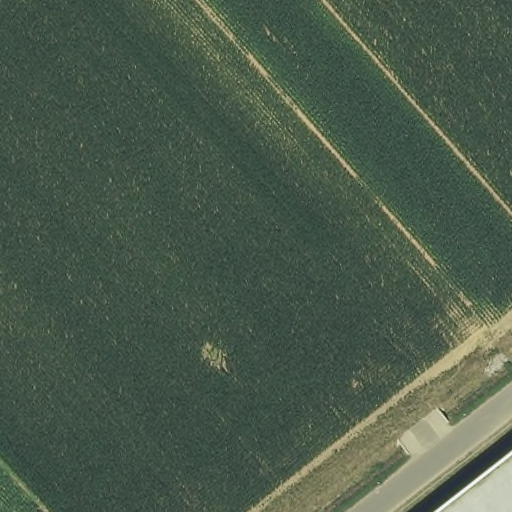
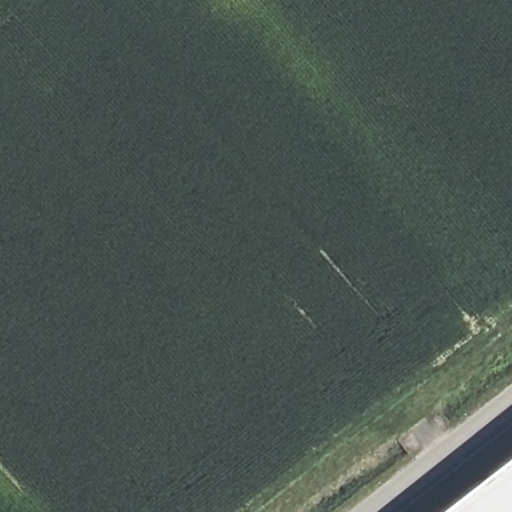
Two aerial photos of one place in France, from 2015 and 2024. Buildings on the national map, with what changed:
unchanged [(512,512),(440,512),(512,456),(512,512)]

